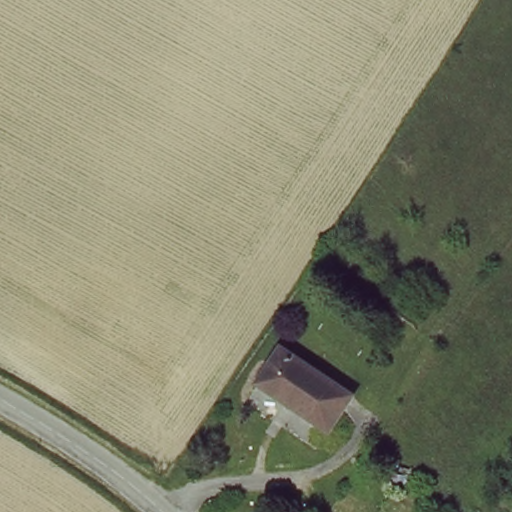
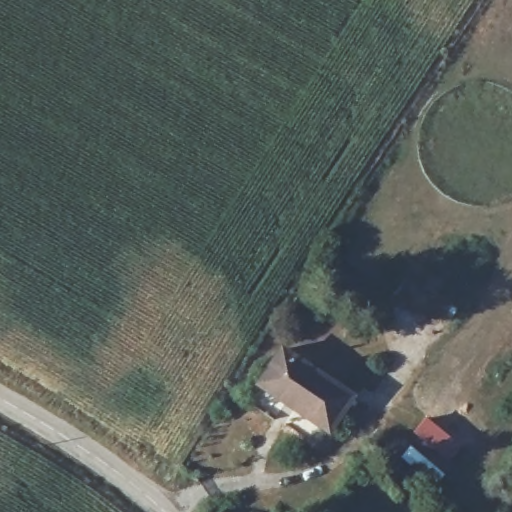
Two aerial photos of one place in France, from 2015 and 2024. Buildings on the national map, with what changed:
unchanged [(357,396),(331,433),(264,389),(290,351),(357,396)]

